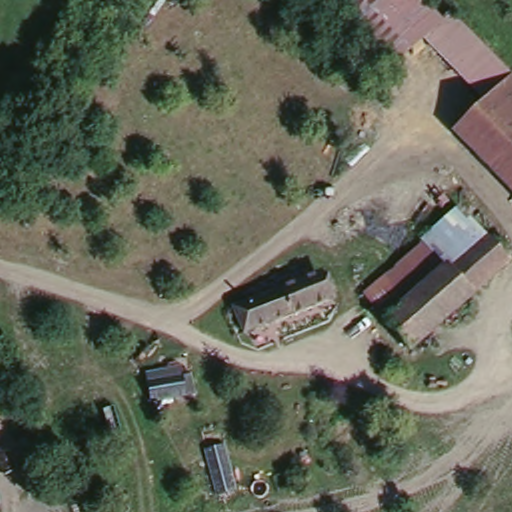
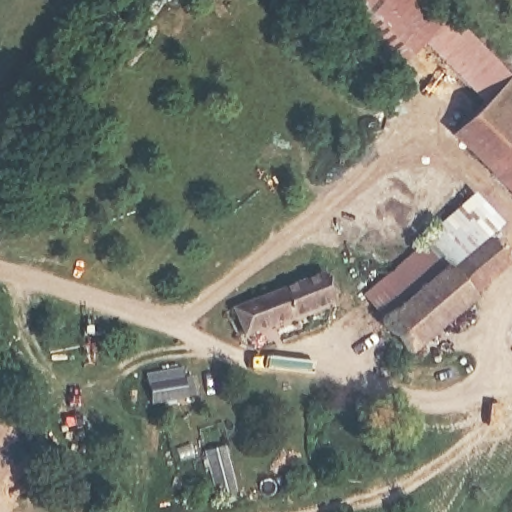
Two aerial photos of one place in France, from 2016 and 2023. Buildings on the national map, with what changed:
unchanged [(391,71),(329,0),(421,0),(441,23),(426,40),(391,71)]
unchanged [(426,40),(441,23),(451,16),(511,84),(485,106),(426,40)]
unchanged [(451,134),(485,106),(511,84),(512,85),(512,202),(451,134)]
unchanged [(357,291),(464,206),(486,231),(442,265),(377,317),(357,291)]
unchanged [(442,265),(486,231),(508,261),(467,295),(442,265)]
unchanged [(442,265),(467,295),(401,346),(377,317),(442,265)]
unchanged [(233,304),(325,274),(335,305),(243,335),(233,304)]
unchanged [(145,377),(190,362),(199,392),(155,409),(145,377)]
unchanged [(208,448),(226,445),(235,490),(217,495),(208,448)]

